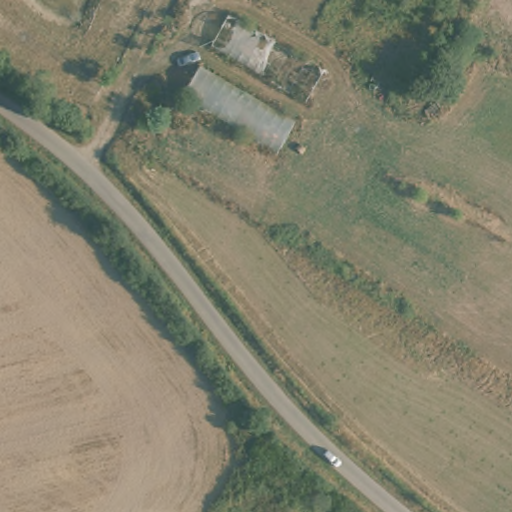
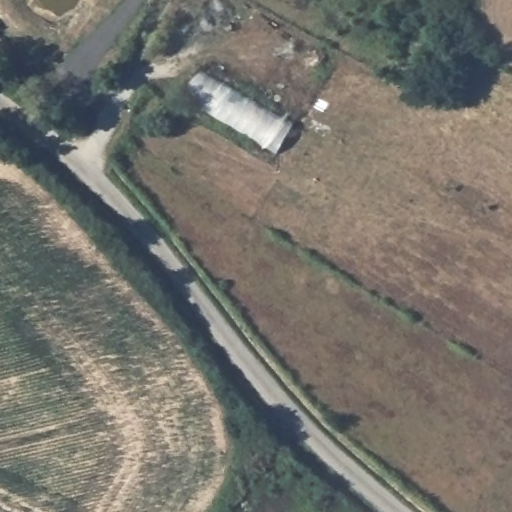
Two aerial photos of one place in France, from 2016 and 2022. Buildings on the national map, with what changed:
[]

